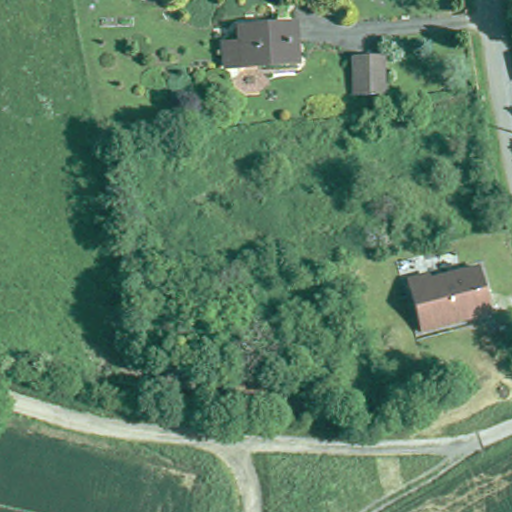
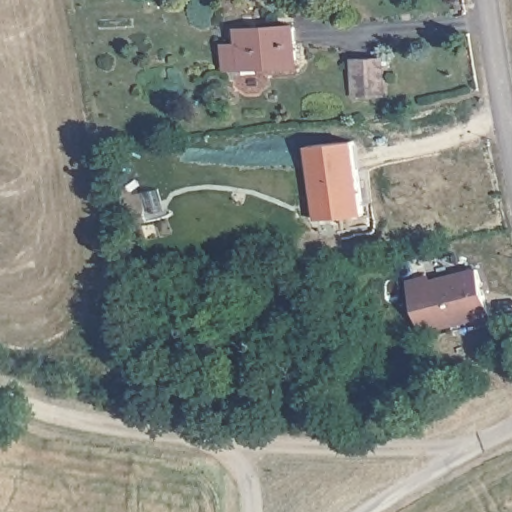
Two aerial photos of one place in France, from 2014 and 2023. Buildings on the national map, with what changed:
unchanged [(224,46),(240,45),(239,30),(296,27),(297,64),(242,67),(226,67),(224,46)]
unchanged [(382,96),(355,96),(354,59),(382,58),(382,96)]
new [(310,146),(356,143),(362,217),(316,221),(310,146)]
unchanged [(431,278),(432,285),(480,272),(491,318),(420,338),(407,281),(431,278)]

